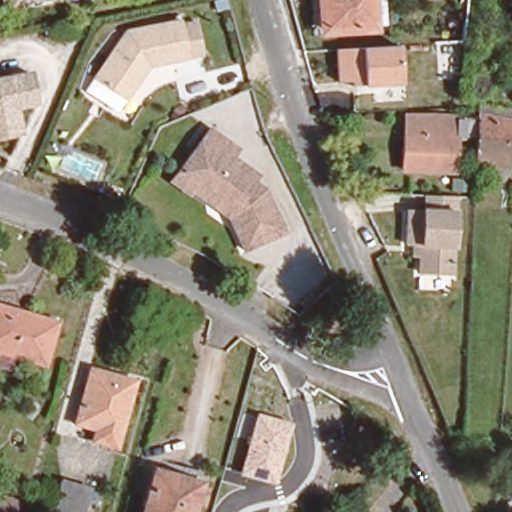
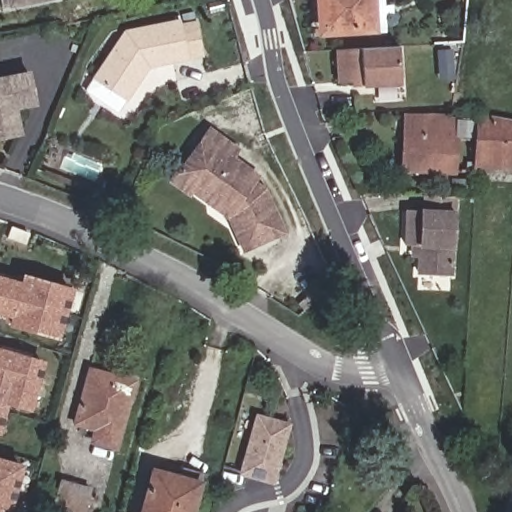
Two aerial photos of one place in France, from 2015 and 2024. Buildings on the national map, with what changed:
unchanged [(4,10),(2,0),(52,0),(4,10)]
unchanged [(372,32),(324,36),(322,0),(384,0),(385,31),(372,32)]
unchanged [(78,87),(86,77),(121,32),(175,20),(183,57),(146,65),(144,66),(134,77),(124,91),(117,100),(109,111),(78,87)]
unchanged [(334,91),(332,73),(385,71),(385,67),(403,65),(404,86),(387,87),(334,91)]
unchanged [(440,93),(438,66),(451,65),(452,92),(440,93)]
unchanged [(14,107),(19,133),(0,137),(0,78),(28,72),(34,103),(14,107)]
unchanged [(471,162),(473,114),(473,106),(473,101),(508,109),(505,121),(512,123),(512,166),(471,166),(471,172),(463,172),(464,162),(471,162)]
unchanged [(455,171),(403,171),(406,125),(403,125),(404,116),(457,117),(455,171)]
unchanged [(218,216),(214,221),(202,212),(200,204),(202,201),(185,189),(183,192),(166,179),(175,167),(203,127),(231,147),(226,156),(236,164),(251,174),(246,180),(257,187),(277,230),(237,248),(230,232),(225,221),(218,216)]
unchanged [(417,273),(419,246),(406,245),(406,207),(456,210),(450,274),(417,273)]
new [(26,278),(28,271),(79,285),(66,334),(15,321),(17,313),(0,309),(0,272),(26,278)]
demolished [(0,355),(0,310),(62,327),(50,370),(15,360),(0,355)]
new [(51,358),(38,408),(13,401),(4,432),(0,431),(0,344),(51,358)]
unchanged [(116,454),(91,447),(95,433),(76,427),(90,373),(134,385),(116,454)]
unchanged [(275,485),(238,476),(255,413),(291,422),(275,485)]
new [(30,461),(16,512),(0,512),(0,453),(30,461)]
unchanged [(177,482),(180,472),(200,477),(198,487),(191,512),(143,512),(152,476),(177,482)]
unchanged [(59,481),(90,489),(85,512),(61,512),(51,510),(59,481)]
demolished [(13,502),(10,512),(0,512),(0,498),(13,502)]

